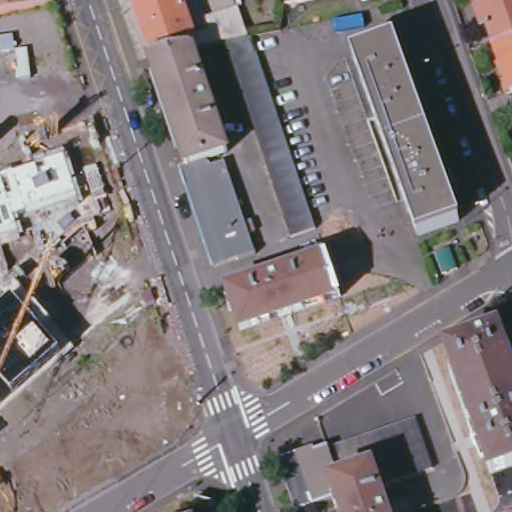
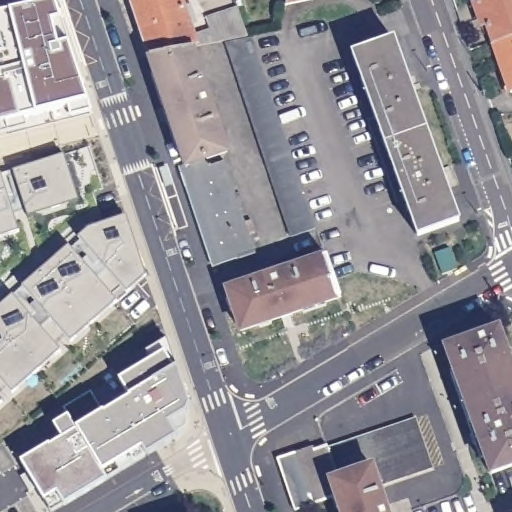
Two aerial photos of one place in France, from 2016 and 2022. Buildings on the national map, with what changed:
unchanged [(0,15),(0,0),(53,0),(55,3),(0,15)]
unchanged [(242,4),(247,34),(197,43),(192,44),(150,57),(132,4),(143,0),(183,0),(195,35),(212,32),(211,21),(242,4)]
unchanged [(491,0),(512,0),(512,39),(502,43),(496,46),(481,4),(491,0)]
new [(0,124),(0,15),(10,13),(55,3),(87,103),(35,115),(0,124)]
unchanged [(225,41),(252,35),(317,233),(290,241),(225,41)]
unchanged [(496,46),(502,43),(512,39),(512,90),(496,46)]
unchanged [(352,56),(395,41),(459,223),(415,237),(352,56)]
unchanged [(229,153),(207,160),(209,166),(224,161),(244,223),(253,220),(257,233),(249,236),(255,257),(236,263),(235,260),(212,267),(180,168),(186,166),(150,57),(192,44),(229,153)]
new [(64,155),(78,202),(27,218),(12,171),(64,155)]
new [(19,233),(0,238),(0,175),(19,233)]
new [(87,229),(125,217),(145,277),(125,294),(77,238),(87,229)]
new [(67,247),(116,303),(70,343),(21,287),(67,247)]
unchanged [(439,276),(431,255),(446,250),(454,271),(439,276)]
unchanged [(227,289),(326,258),(340,301),(240,332),(227,289)]
new [(0,307),(12,297),(60,352),(11,394),(0,381),(0,307)]
unchanged [(485,453),(480,455),(452,377),(455,375),(447,351),(497,332),(507,356),(512,354),(512,355),(512,469),(492,477),(485,453)]
new [(185,413),(187,426),(184,431),(179,434),(146,455),(65,503),(52,511),(44,499),(20,462),(49,445),(50,446),(62,439),(54,425),(69,416),(63,408),(91,393),(107,410),(130,397),(117,381),(152,359),(147,352),(167,339),(177,367),(188,405),(185,413)]
new [(0,400),(0,398),(1,400),(0,400)]
unchanged [(341,498),(299,512),(282,460),(317,448),(319,450),(332,446),(333,449),(423,423),(437,473),(384,491),(391,512),(345,512),(341,498)]

